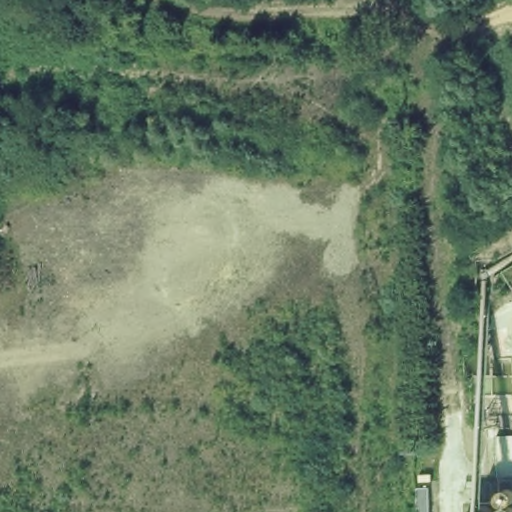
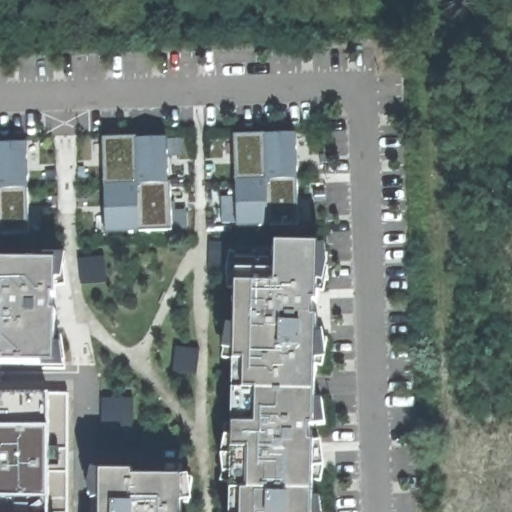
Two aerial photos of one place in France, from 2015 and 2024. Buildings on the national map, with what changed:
new [(296,134),(299,225),(238,227),(234,136),(296,134)]
new [(167,138),(172,231),(106,233),(103,139),(167,138)]
new [(27,143),(30,234),(0,235),(0,144),(27,143)]
new [(210,242),(319,245),(319,257),(326,257),(329,281),(319,283),(318,303),(314,303),(313,317),(317,318),(317,337),(327,340),(324,363),(317,363),(316,401),(322,401),(326,425),(312,428),(310,442),(315,443),(315,446),(321,445),(324,464),(321,482),(314,482),(314,499),(320,500),(322,512),(231,512),(232,484),(220,481),(225,458),(232,458),(232,452),(222,450),(225,426),(232,426),(235,354),(224,351),(228,327),(235,328),(236,289),(229,289),(227,271),(210,270),(210,242)]
new [(37,259),(40,251),(63,255),(62,297),(58,298),(58,312),(62,313),(61,345),(67,346),(71,370),(49,370),(48,365),(0,365),(0,259),(37,259)]
new [(106,258),(107,283),(82,283),(80,259),(106,258)]
new [(175,347),(200,350),(197,375),(173,372),(175,347)]
new [(68,395),(68,512),(0,512),(0,395),(68,395)]
new [(102,398),(134,399),(133,431),(102,431),(102,398)]
new [(100,499),(93,497),(94,472),(182,473),(182,478),(193,479),(189,504),(182,504),(182,512),(100,512),(100,499)]
demolished [(512,512),(473,512),(474,490),(494,490),(512,490),(512,512)]

